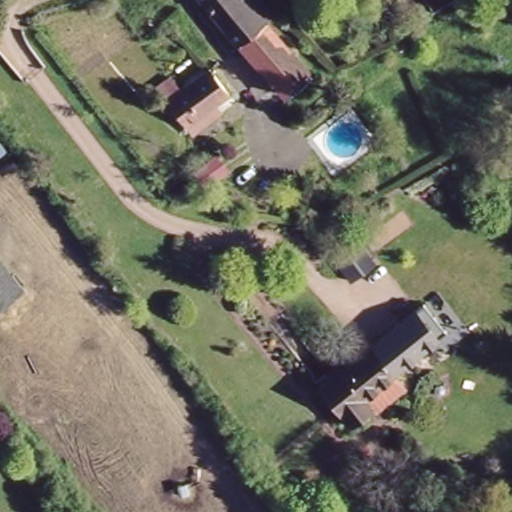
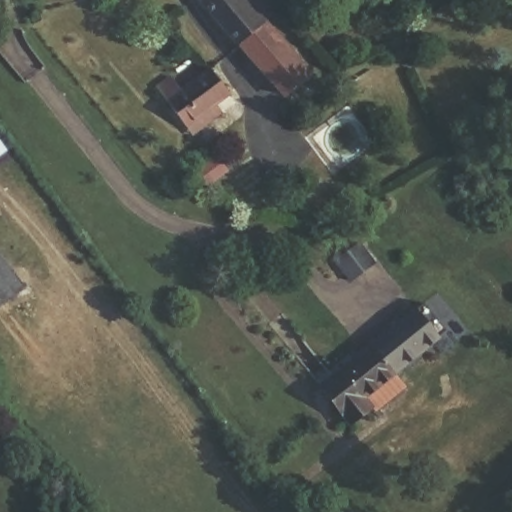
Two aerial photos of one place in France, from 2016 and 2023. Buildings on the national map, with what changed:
unchanged [(255,0),(273,22),(237,48),(199,0),(255,0)]
unchanged [(273,0),(282,0),(277,5),(273,0)]
unchanged [(300,0),(305,0),(302,3),(300,0)]
unchanged [(267,29),(308,77),(283,98),(240,48),(267,29)]
unchanged [(172,76),(182,90),(212,69),(230,94),(185,125),(158,86),(172,76)]
unchanged [(17,289),(0,302),(0,267),(17,289)]
unchanged [(367,340),(390,369),(357,394),(362,401),(343,416),(315,381),(367,340)]

